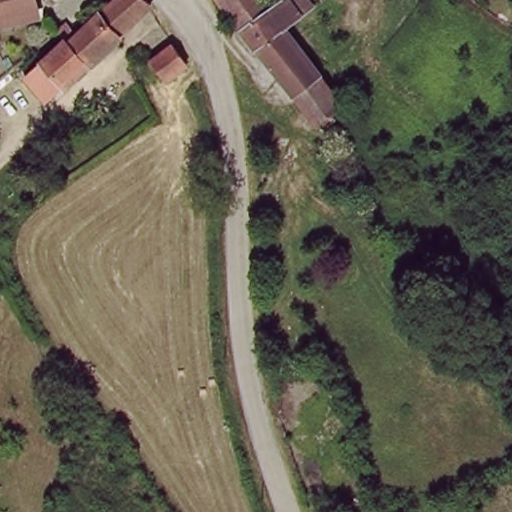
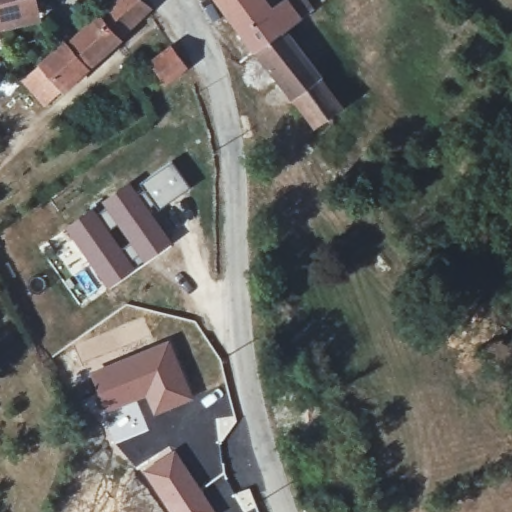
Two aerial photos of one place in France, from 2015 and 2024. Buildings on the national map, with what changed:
unchanged [(0,15),(0,0),(39,0),(41,5),(0,15)]
unchanged [(23,79),(63,41),(66,44),(97,17),(110,6),(117,0),(140,0),(151,8),(45,102),(23,79)]
unchanged [(256,0),(265,11),(235,30),(213,0),(256,0)]
unchanged [(296,0),(304,14),(297,19),(280,32),(275,36),(252,53),(235,30),(265,11),(281,0),(296,0)]
unchanged [(318,134),(312,127),(252,53),(275,36),(280,32),(320,85),(337,108),(327,115),(332,122),(318,134)]
unchanged [(167,78),(151,57),(172,42),(187,62),(187,63),(167,78)]
new [(143,256),(140,252),(126,261),(131,267),(107,283),(68,226),(91,210),(95,215),(108,206),(105,201),(128,184),(135,195),(144,189),(140,183),(171,160),(188,186),(156,208),(152,204),(145,209),(166,240),(143,256)]
new [(152,413),(146,395),(107,409),(90,371),(168,338),(193,398),(152,413)]
new [(218,512),(168,512),(140,476),(173,450),(218,512)]

